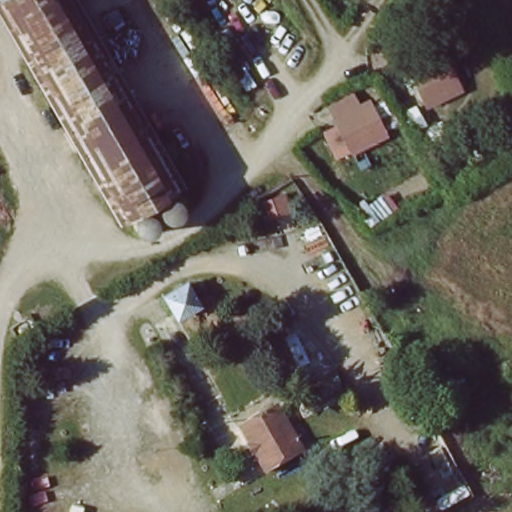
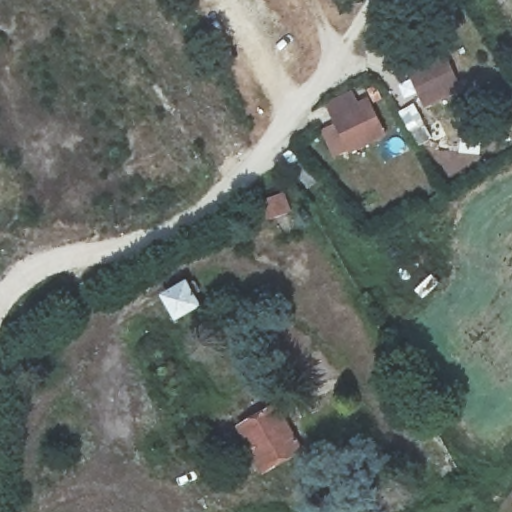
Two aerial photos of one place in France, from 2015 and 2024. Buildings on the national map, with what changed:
demolished [(171,189),(179,191),(184,197),(186,206),(184,211),(180,215),(176,217),(169,219),(165,219),(160,216),(157,212),(154,207),(153,202),(154,199),(143,205),(147,206),(154,210),(157,213),(160,219),(160,226),(156,232),(149,237),(142,237),(137,235),(132,231),(129,227),(128,221),(127,217),(130,211),(121,215),(0,1),(0,0),(82,0),(183,184),(171,189)]
unchanged [(446,52),(449,59),(462,86),(427,101),(416,76),(412,67),(446,52)]
unchanged [(370,97),(371,100),(385,130),(352,146),(338,119),(336,114),(370,97)]
unchanged [(205,306),(178,321),(163,293),(189,280),(205,306)]
unchanged [(282,406),(304,448),(265,471),(241,427),(282,406)]

